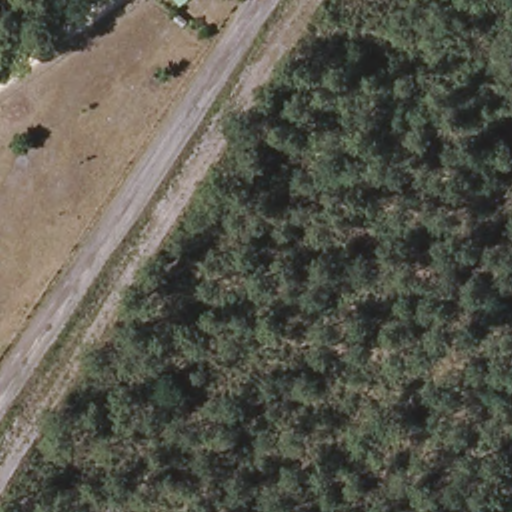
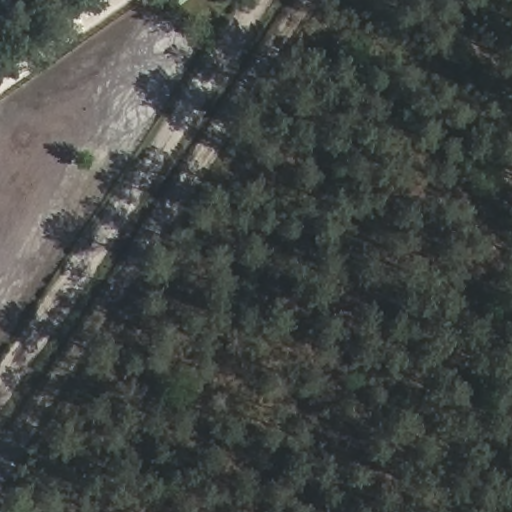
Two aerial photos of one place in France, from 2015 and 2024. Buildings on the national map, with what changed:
[]

